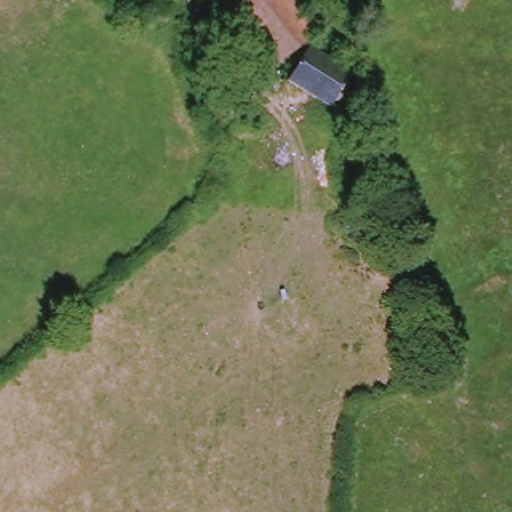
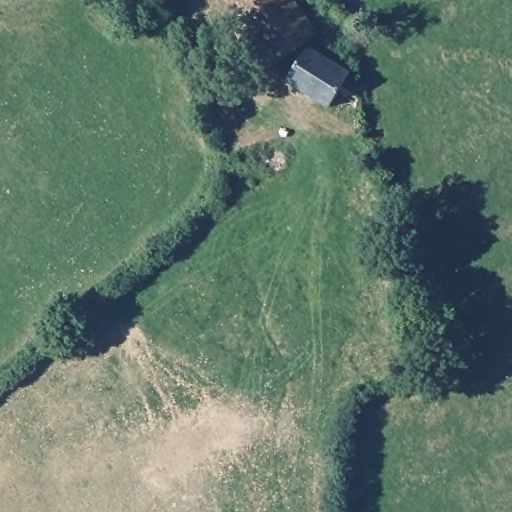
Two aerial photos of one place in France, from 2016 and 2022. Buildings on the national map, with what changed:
unchanged [(272,63),(224,0),(287,0),(312,32),(272,63)]
unchanged [(304,47),(346,73),(339,86),(359,100),(346,119),(326,105),(326,106),(283,80),(304,47)]

